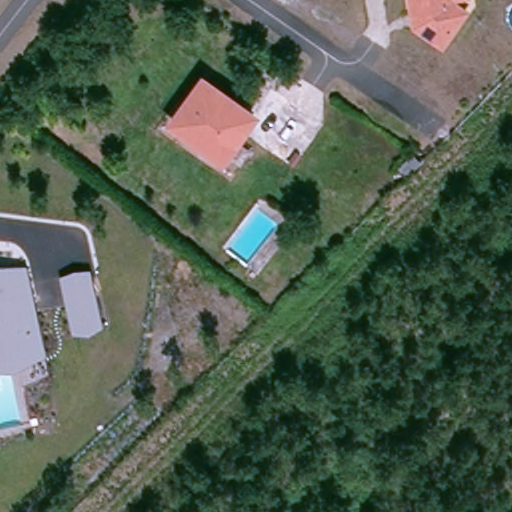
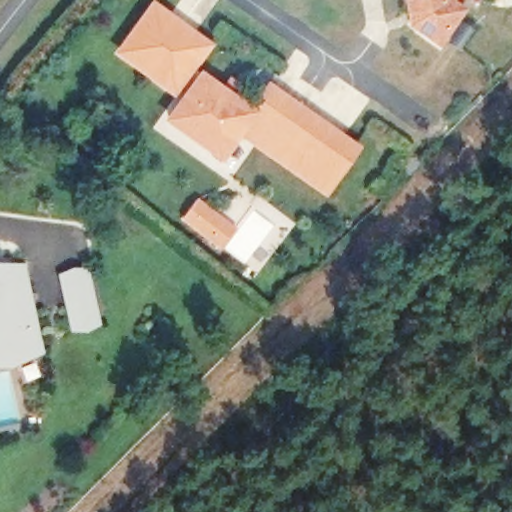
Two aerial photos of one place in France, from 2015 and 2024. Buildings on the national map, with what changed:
unchanged [(408,0),(460,0),(470,9),(439,46),(414,26),(408,0)]
new [(193,66),(173,95),(115,54),(152,2),(209,44),(193,66)]
unchanged [(218,161),(155,120),(173,95),(193,66),(253,108),(218,161)]
new [(269,80),(363,148),(329,199),(237,133),(253,108),(251,106),(269,80)]
unchanged [(15,372),(0,373),(0,265),(26,265),(47,356),(15,372)]
unchanged [(103,329),(88,338),(72,334),(58,275),(90,269),(103,329)]
unchanged [(242,283),(235,292),(226,285),(233,275),(242,283)]

